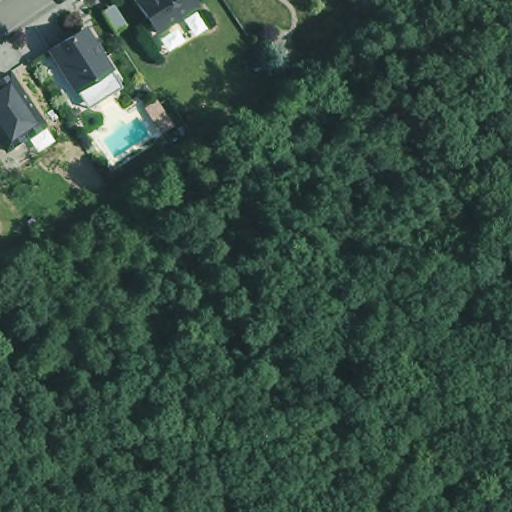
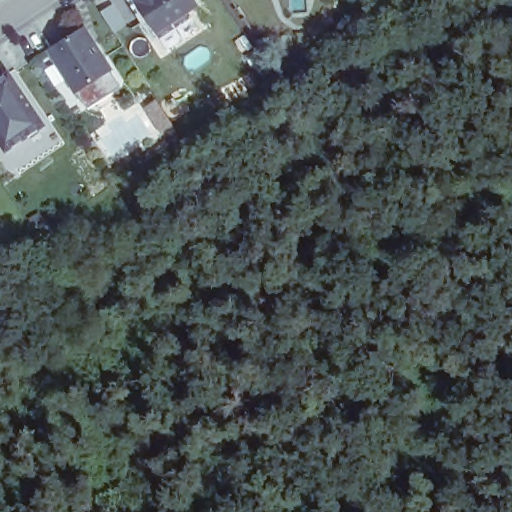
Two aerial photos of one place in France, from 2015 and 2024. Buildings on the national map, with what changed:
unchanged [(146,0),(198,0),(162,25),(146,0)]
unchanged [(95,37),(100,35),(117,61),(83,83),(57,41),(85,21),(95,37)]
unchanged [(0,141),(0,80),(13,72),(47,126),(7,150),(0,141)]

